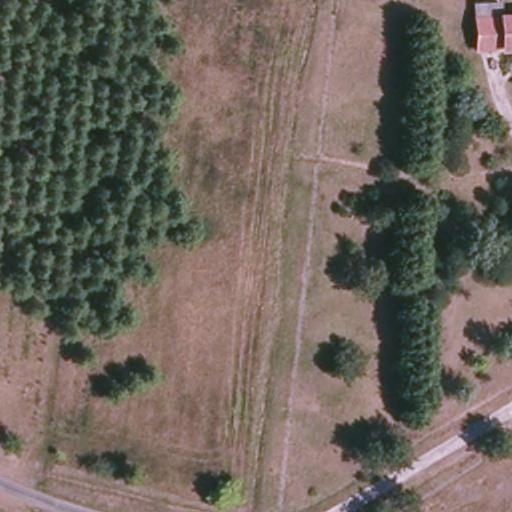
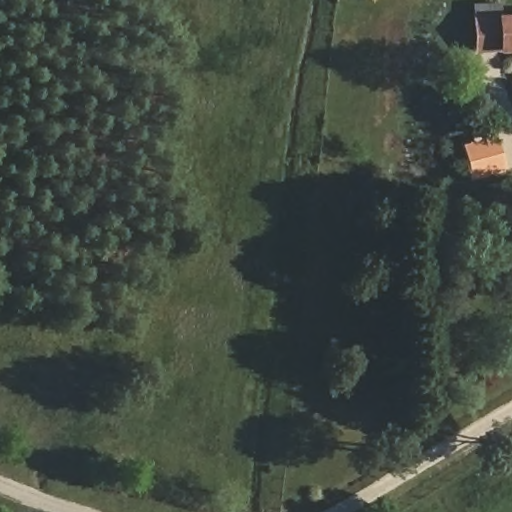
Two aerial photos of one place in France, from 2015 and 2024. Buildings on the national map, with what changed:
unchanged [(472,7),(512,2),(512,49),(476,51),(472,7)]
new [(470,179),(461,144),(495,135),(505,169),(470,179)]

